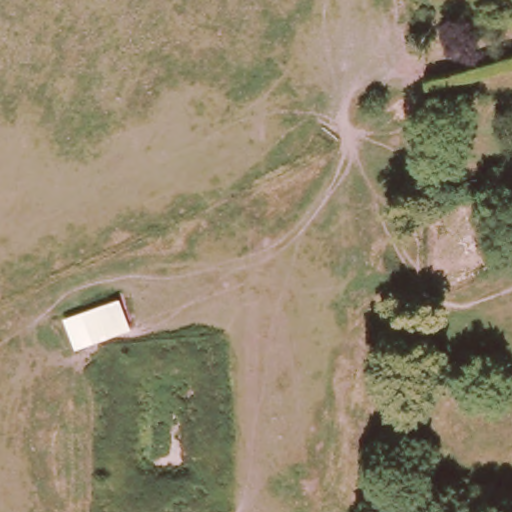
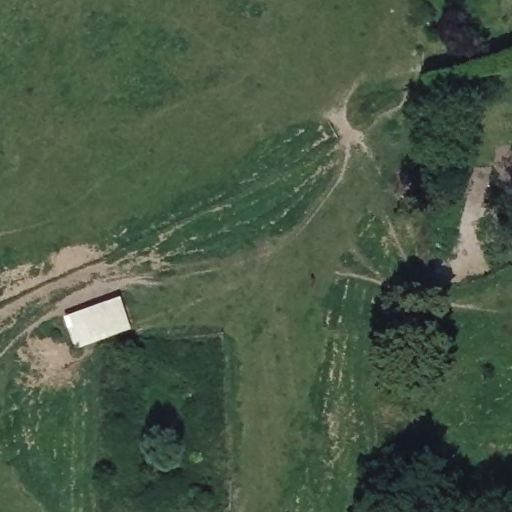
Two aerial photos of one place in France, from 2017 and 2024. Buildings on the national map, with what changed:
unchanged [(71,334),(78,332),(75,316),(122,299),(131,330),(75,349),(71,334)]

